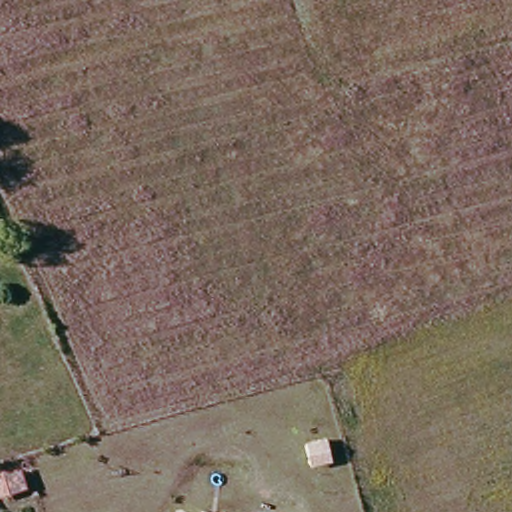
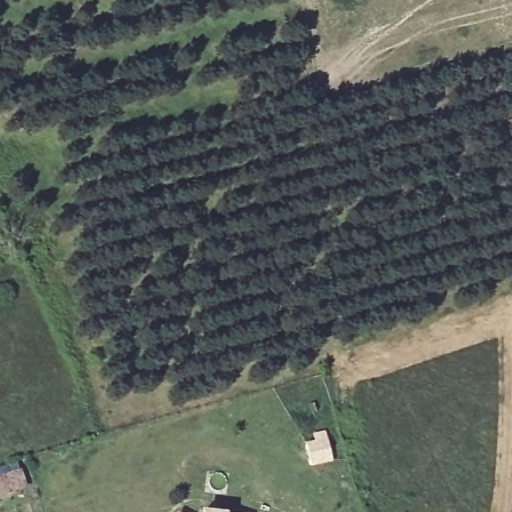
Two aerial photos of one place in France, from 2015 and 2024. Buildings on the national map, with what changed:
unchanged [(210,512),(199,512),(200,511),(210,512)]

